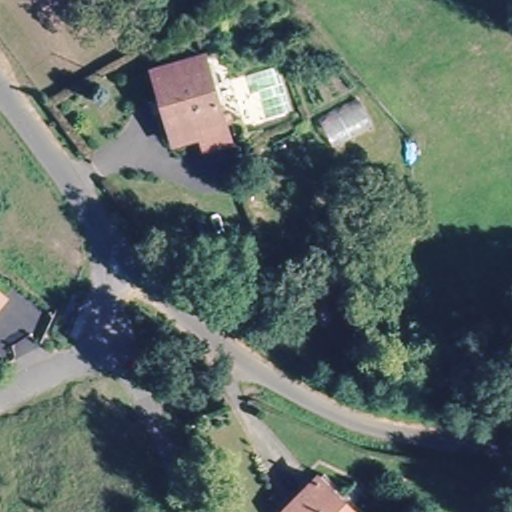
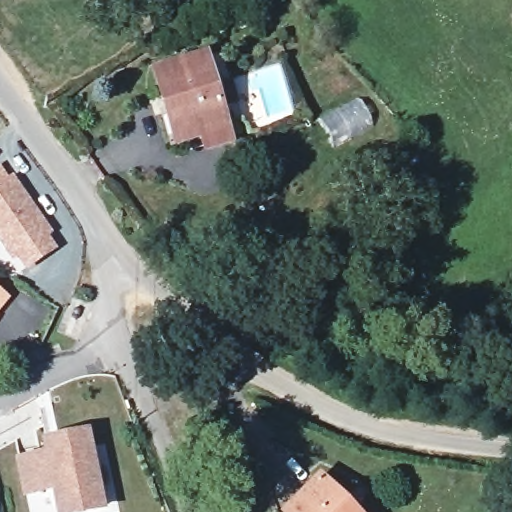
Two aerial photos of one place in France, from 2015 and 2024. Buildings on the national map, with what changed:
unchanged [(208,150),(202,132),(181,138),(175,140),(167,111),(155,72),(206,57),(226,125),(232,142),(208,150)]
new [(16,177),(54,235),(48,239),(58,252),(28,273),(16,260),(12,262),(0,245),(0,169),(10,181),(16,177)]
unchanged [(0,300),(0,288),(6,293),(0,300)]
new [(106,511),(101,512),(55,512),(51,494),(21,499),(14,458),(43,454),(40,440),(90,430),(106,511)]
unchanged [(325,475),(363,512),(288,512),(325,475)]

